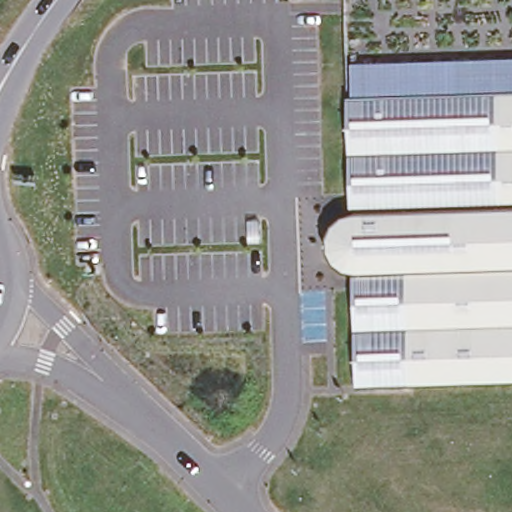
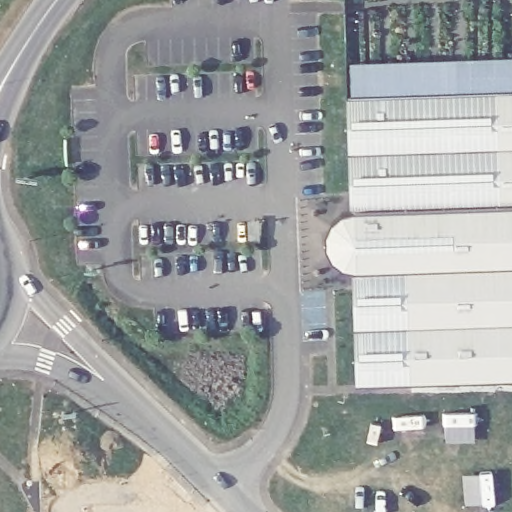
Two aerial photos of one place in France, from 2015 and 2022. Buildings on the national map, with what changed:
unchanged [(352,270),(340,266),(329,255),(325,242),(328,228),(334,218),(342,213),(349,211),(347,94),(350,94),(348,62),(512,57),(512,379),(354,384),(352,270)]

